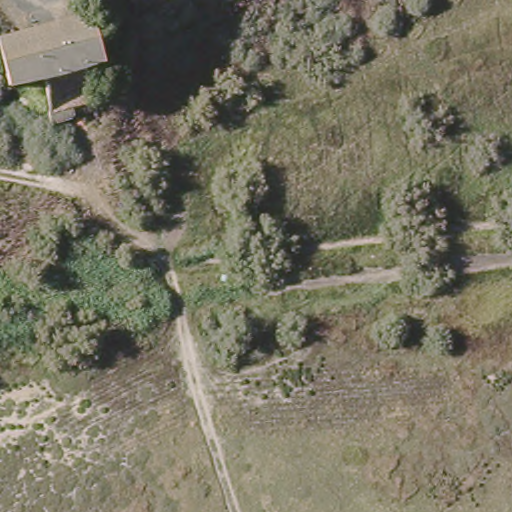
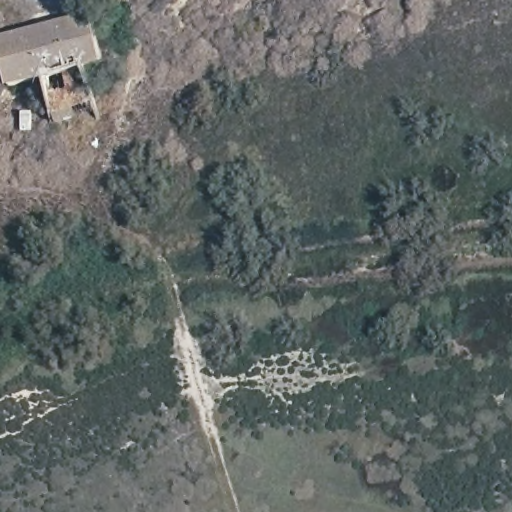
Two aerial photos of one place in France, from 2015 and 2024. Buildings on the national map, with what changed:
unchanged [(0,75),(0,31),(81,9),(92,54),(75,58),(37,69),(1,80),(0,75)]
unchanged [(37,69),(75,58),(84,92),(44,104),(37,69)]

